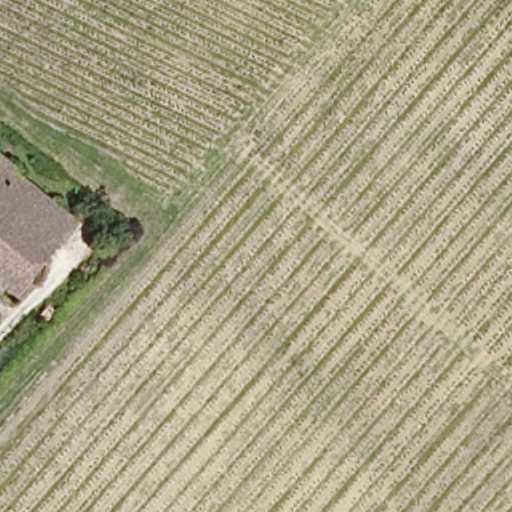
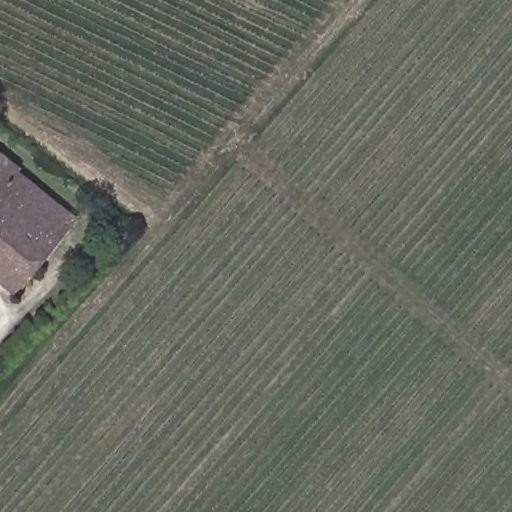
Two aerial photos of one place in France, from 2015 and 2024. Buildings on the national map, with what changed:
unchanged [(16,210),(55,243),(15,292),(0,281),(0,159),(34,189),(16,210)]
unchanged [(16,210),(34,189),(35,186),(74,219),(55,243),(16,210)]
unchanged [(48,303),(55,310),(47,318),(40,312),(48,303)]

